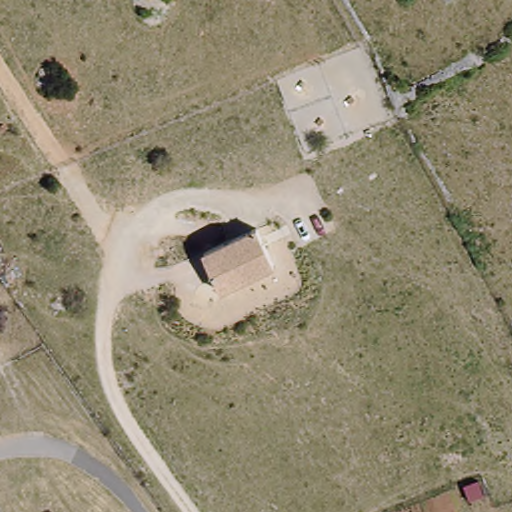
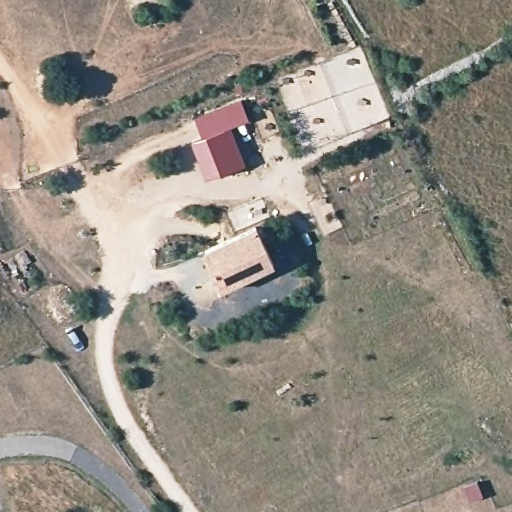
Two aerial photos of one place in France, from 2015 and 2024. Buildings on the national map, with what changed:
new [(203,139),(195,119),(241,99),(249,119),(231,126),(245,164),(206,179),(192,142),(203,139)]
unchanged [(257,229),(272,265),(218,289),(204,252),(257,229)]

